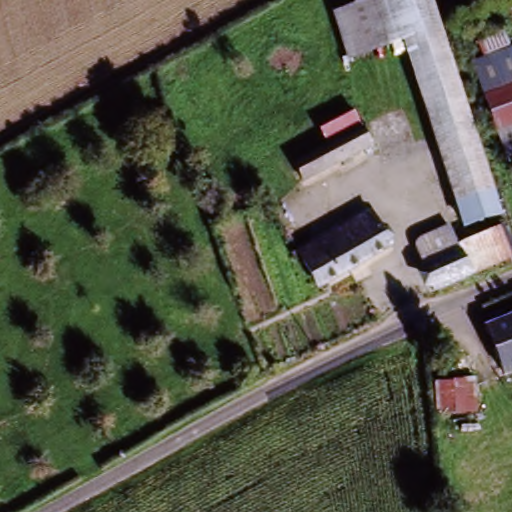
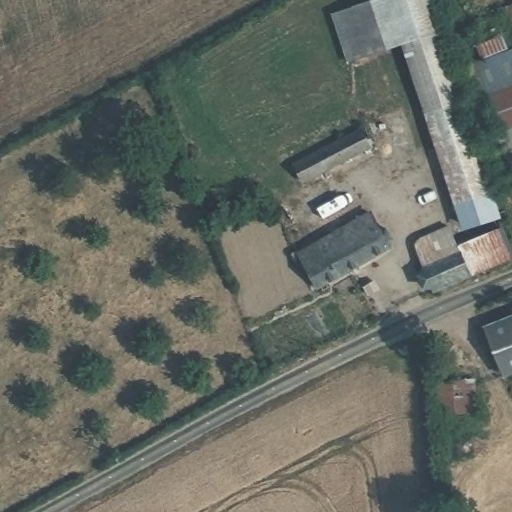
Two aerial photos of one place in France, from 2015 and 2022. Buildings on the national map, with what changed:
unchanged [(337,8),(363,0),(429,0),(437,27),(435,30),(404,37),(350,52),(337,8)]
unchanged [(404,37),(435,30),(487,198),(455,209),(404,37)]
unchanged [(512,56),(512,82),(481,92),(474,68),(512,56)]
unchanged [(481,92),(512,82),(512,149),(502,153),(481,92)]
unchanged [(365,120),(378,142),(301,183),(289,163),(365,120)]
unchanged [(313,267),(325,259),(317,243),(369,209),(387,242),(320,280),(313,267)]
unchanged [(414,243),(453,228),(460,248),(499,233),(507,255),(469,270),(430,284),(414,243)]
unchanged [(477,316),(512,303),(512,375),(501,379),(477,316)]
unchanged [(472,377),(473,408),(435,410),(435,378),(472,377)]

